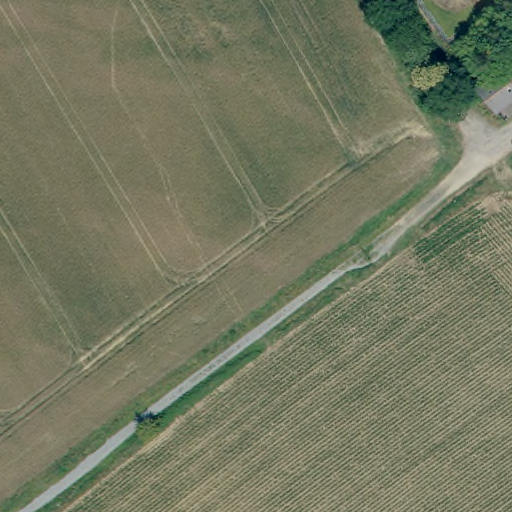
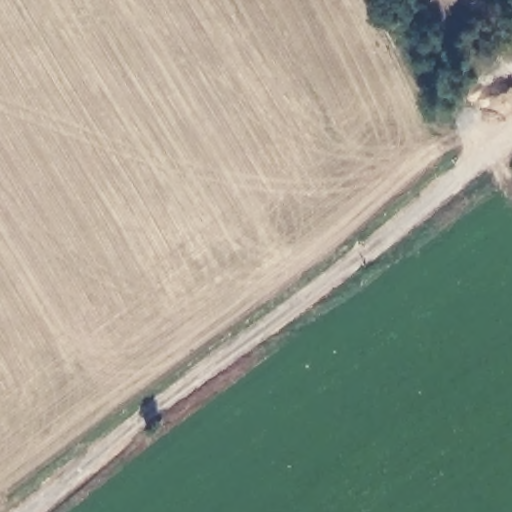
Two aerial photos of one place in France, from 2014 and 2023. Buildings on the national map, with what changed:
unchanged [(512,55),(512,93),(499,103),(480,79),(512,55)]
unchanged [(494,103),(489,108),(476,94),(481,89),(494,103)]

